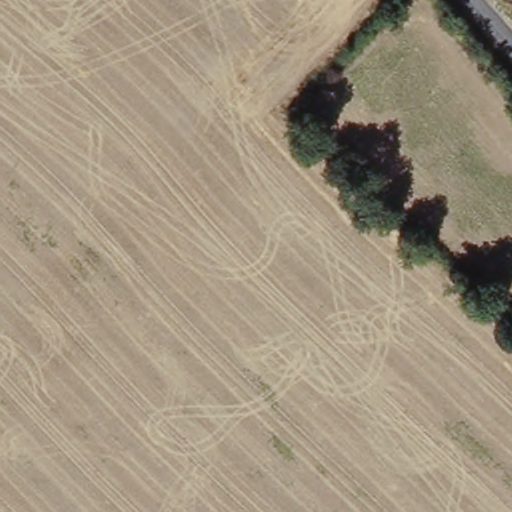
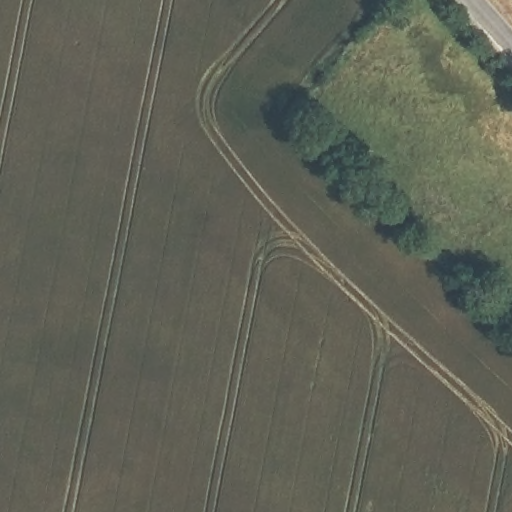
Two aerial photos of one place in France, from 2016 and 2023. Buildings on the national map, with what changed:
[]

